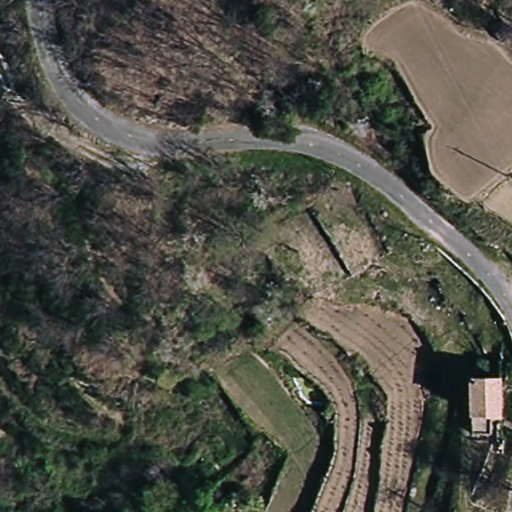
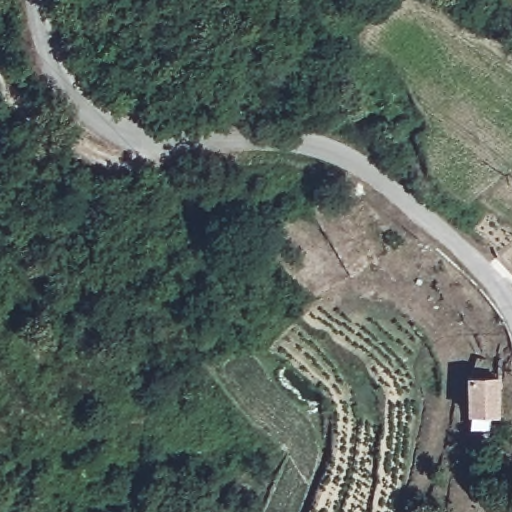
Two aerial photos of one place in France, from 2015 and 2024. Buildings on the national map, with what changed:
unchanged [(473,433),(471,412),(472,377),(499,378),(499,414),(492,414),(491,433),(473,433)]

